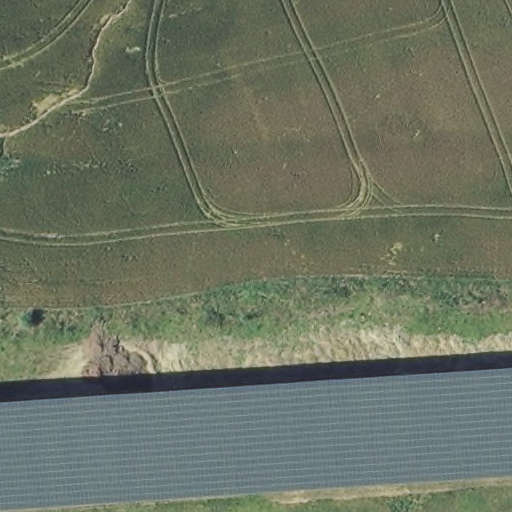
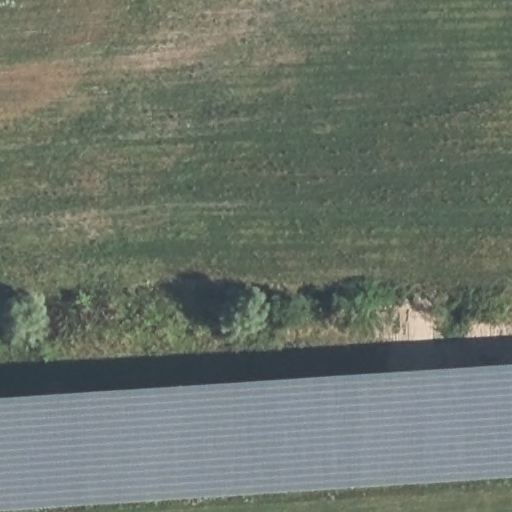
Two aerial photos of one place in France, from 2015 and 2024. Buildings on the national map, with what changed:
unchanged [(0,510),(0,400),(512,365),(512,477),(0,510)]

